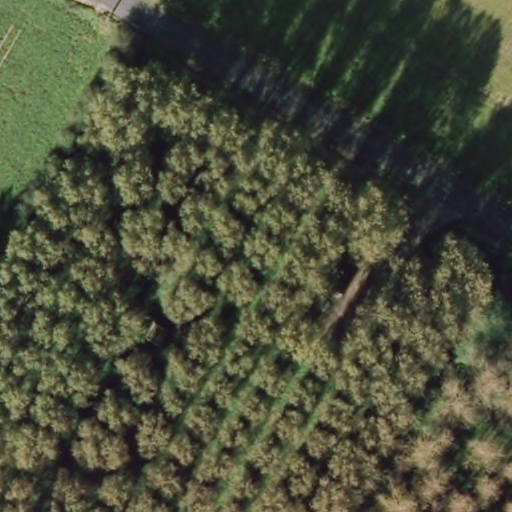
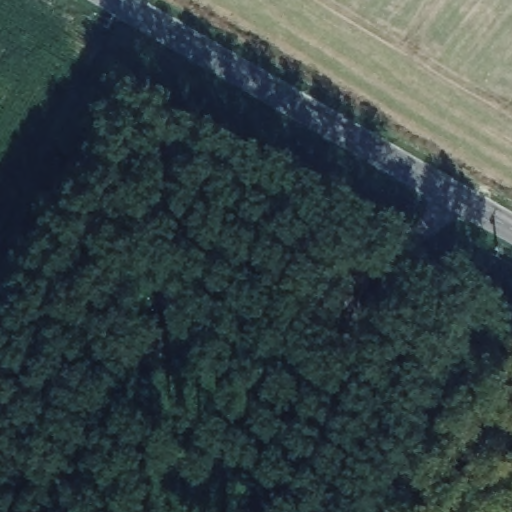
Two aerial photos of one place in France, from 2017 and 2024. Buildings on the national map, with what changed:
unchanged [(331,295),(340,279),(357,290),(348,305),(331,295)]
unchanged [(175,365),(154,350),(160,341),(150,333),(160,320),(190,341),(175,365)]

